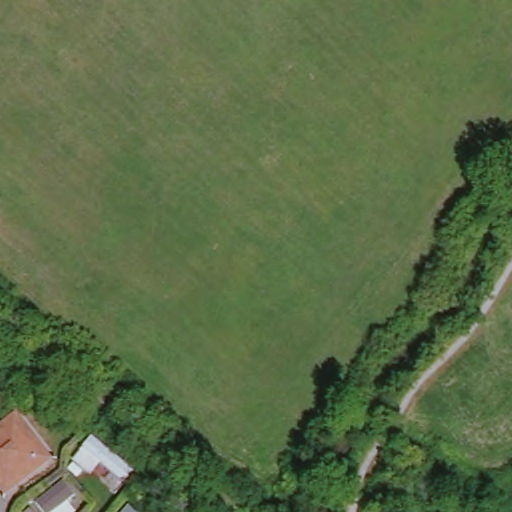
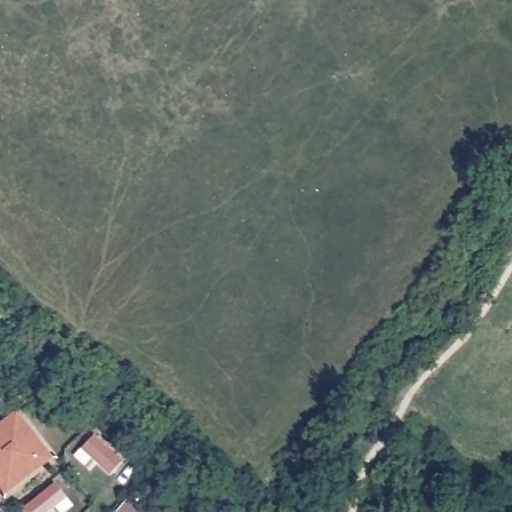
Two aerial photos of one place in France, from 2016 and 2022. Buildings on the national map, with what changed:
unchanged [(6,492),(0,484),(0,427),(14,415),(49,458),(6,492)]
unchanged [(121,481),(115,477),(106,486),(96,476),(103,466),(77,445),(88,435),(131,471),(121,481)]

